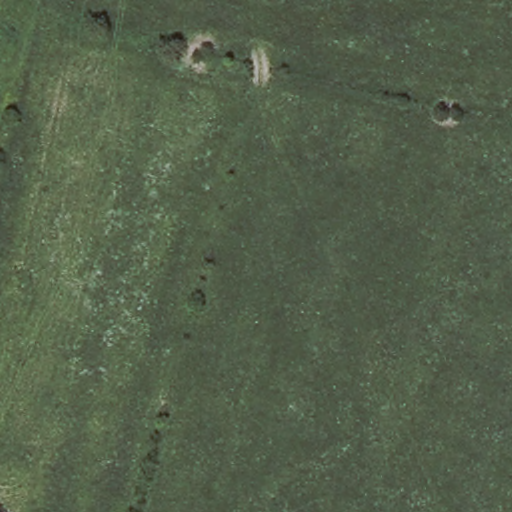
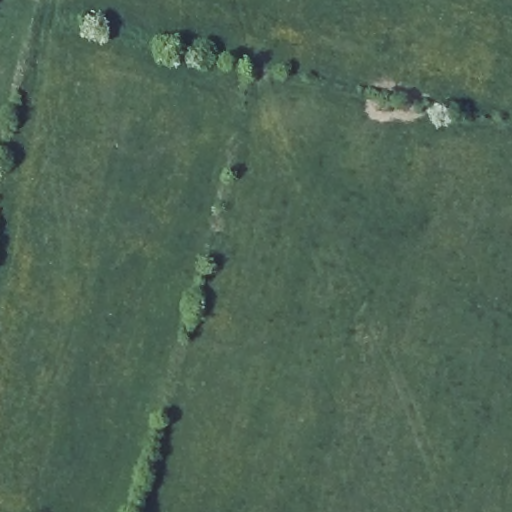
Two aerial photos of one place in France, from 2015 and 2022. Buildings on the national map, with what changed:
[]

